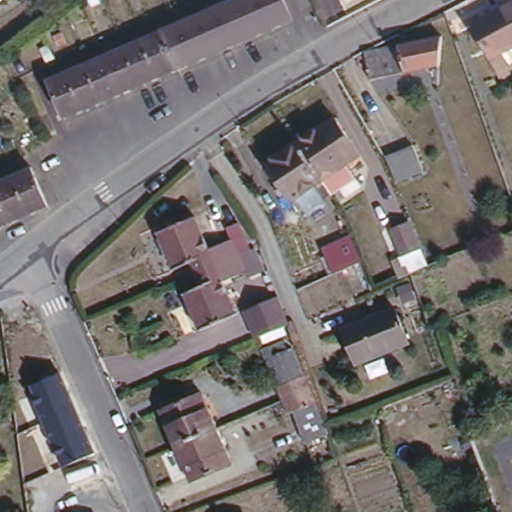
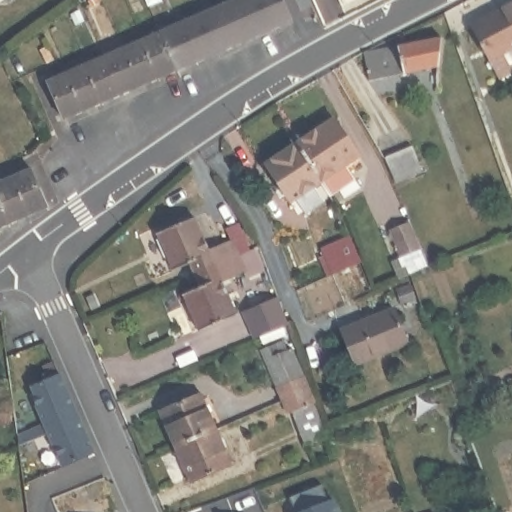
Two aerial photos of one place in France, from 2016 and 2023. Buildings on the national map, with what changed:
unchanged [(43,75),(44,74),(45,75),(157,28),(157,27),(159,26),(160,27),(222,0),(281,0),(288,17),(60,115),(43,75)]
unchanged [(502,60),(489,66),(463,16),(494,0),(512,0),(512,50),(500,57),(502,60)]
unchanged [(443,29),(440,60),(371,73),(365,46),(443,29)]
unchanged [(328,114),(353,152),(328,169),(304,130),(328,114)]
unchanged [(320,174),(330,189),(311,201),(300,186),(297,188),(272,151),(304,130),(328,169),(320,174)]
unchanged [(415,145),(427,170),(400,183),(389,158),(388,157),(415,145)]
unchanged [(48,204),(27,213),(9,221),(0,225),(0,180),(30,167),(29,166),(31,165),(31,167),(48,204)]
unchanged [(191,259),(175,267),(159,230),(196,214),(210,247),(231,237),(239,252),(196,272),(191,259)]
unchanged [(387,228),(405,221),(418,247),(424,262),(408,271),(400,255),(387,228)]
unchanged [(336,268),(324,242),(350,232),(362,256),(336,268)]
unchanged [(246,268),(223,278),(238,312),(202,329),(185,292),(202,284),(196,272),(239,252),(246,268)]
unchanged [(280,295),(289,322),(257,336),(245,308),(280,295)]
unchanged [(403,342),(350,364),(336,330),(387,307),(403,342)]
unchanged [(275,382),(262,353),(268,350),(288,342),(305,383),(279,394),(273,383),(275,382)]
unchanged [(58,373),(94,452),(66,466),(28,384),(58,373)]
unchanged [(323,428),(302,437),(289,405),(285,406),(279,394),(305,383),(323,428)]
unchanged [(155,403),(197,387),(212,421),(170,438),(155,403)]
unchanged [(228,458),(187,475),(170,438),(212,421),(228,458)]
new [(290,498),(321,485),(328,500),(333,497),(339,512),(296,512),(290,498)]

